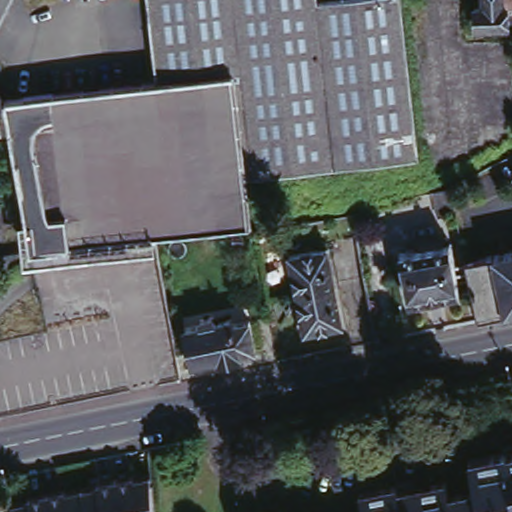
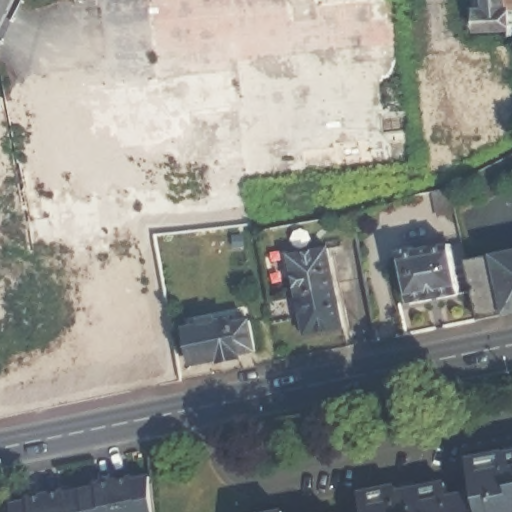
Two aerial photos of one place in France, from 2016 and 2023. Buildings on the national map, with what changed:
demolished [(147,0),(313,0),(314,6),(381,0),(397,0),(415,162),(244,180),(249,229),(152,241),(34,255),(25,210),(6,101),(82,94),(156,86),(147,0)]
unchanged [(502,8),(503,26),(475,27),(475,6),(481,6),(481,0),(512,0),(512,7),(502,8)]
unchanged [(5,113),(2,121),(0,119),(0,104),(4,106),(5,113)]
unchanged [(452,211),(436,214),(431,189),(447,186),(452,211)]
demolished [(0,205),(5,188),(20,192),(15,208),(0,205)]
unchanged [(417,256),(415,249),(445,243),(446,250),(450,249),(460,300),(410,309),(400,259),(417,256)]
unchanged [(328,247),(343,328),(305,335),(289,255),(328,247)]
unchanged [(479,320),(467,260),(512,251),(512,313),(479,320)]
unchanged [(185,331),(201,328),(200,320),(213,318),(214,323),(231,320),(232,325),(249,322),(255,353),(240,356),(241,360),(220,364),(220,360),(192,366),(185,331)]
unchanged [(362,495),(399,488),(400,494),(413,491),(446,485),(449,500),(476,495),(470,462),(507,455),(507,457),(512,456),(512,512),(365,512),(362,495)]
unchanged [(135,481),(135,484),(153,480),(156,512),(122,512),(116,484),(135,481)]
unchanged [(99,491),(99,488),(116,484),(122,512),(86,512),(82,494),(99,491)]
unchanged [(65,495),(66,498),(82,494),(86,512),(50,512),(47,498),(65,495)]
unchanged [(28,505),(27,502),(47,498),(50,512),(12,512),(11,509),(28,505)]
unchanged [(286,511),(286,512),(281,512),(286,511)]

